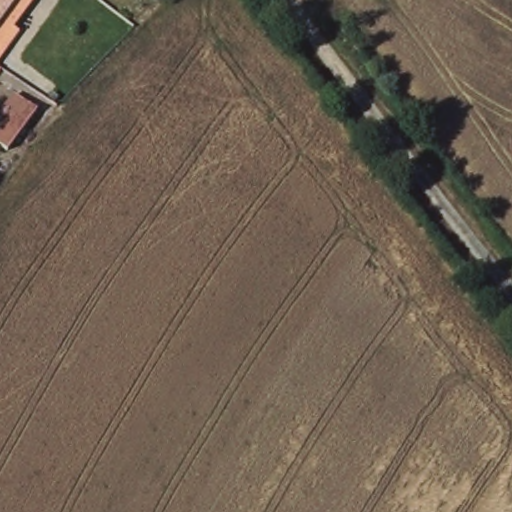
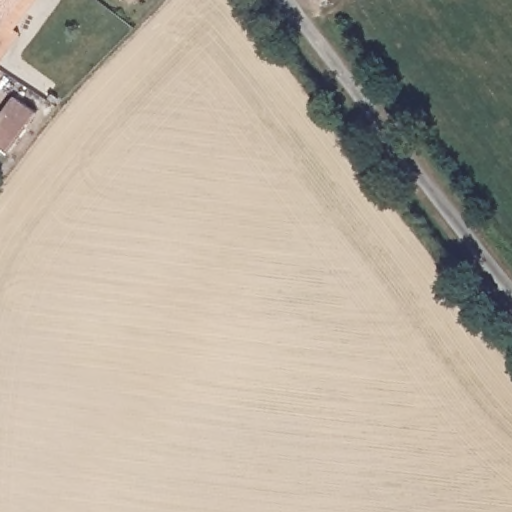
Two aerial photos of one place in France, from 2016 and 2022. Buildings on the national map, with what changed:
unchanged [(25,9),(15,23),(17,25),(14,28),(19,32),(0,58),(0,20),(2,17),(0,15),(0,0),(31,0),(25,9)]
unchanged [(2,17),(0,20),(0,15),(2,17)]
unchanged [(0,70),(0,69),(1,69),(0,70)]
unchanged [(58,98),(55,102),(49,98),(52,93),(58,98)]
unchanged [(7,151),(0,145),(0,114),(14,96),(37,111),(7,151)]

